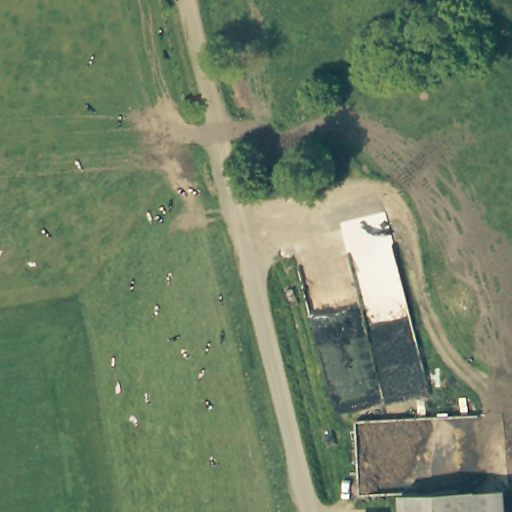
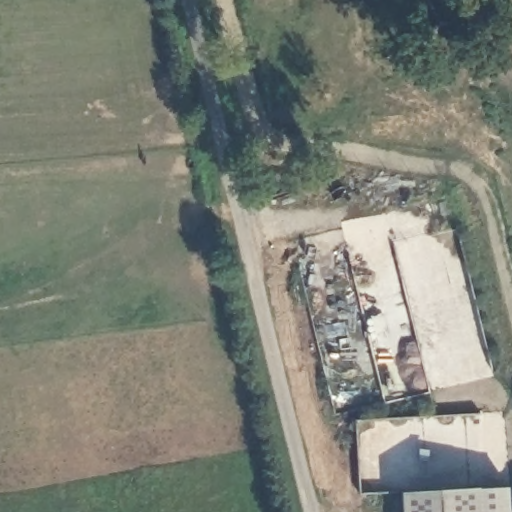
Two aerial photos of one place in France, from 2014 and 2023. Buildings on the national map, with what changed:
unchanged [(399,495),(511,488),(512,503),(512,512),(401,512),(399,495)]

